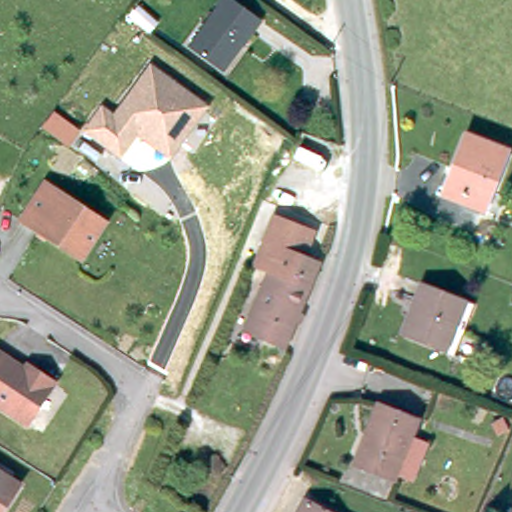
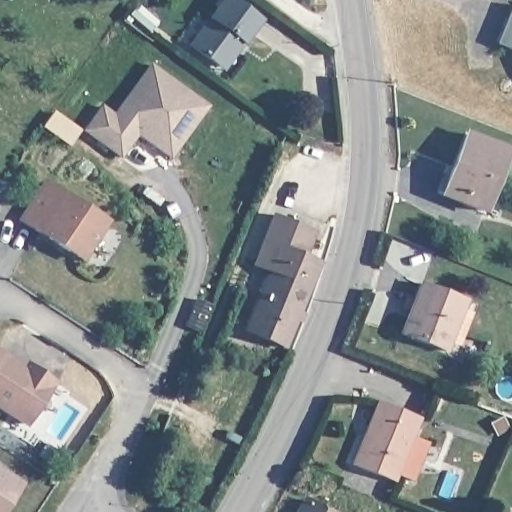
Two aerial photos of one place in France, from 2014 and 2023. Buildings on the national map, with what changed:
unchanged [(191,43),(224,0),(238,0),(265,21),(247,44),(226,70),(220,65),(191,43)]
new [(511,6),(512,6),(512,50),(496,44),(511,6)]
unchanged [(113,113),(150,64),(210,107),(170,161),(137,136),(120,158),(82,131),(101,105),(113,113)]
unchanged [(446,182),(464,128),(508,142),(487,204),(463,197),(443,190),(446,182)]
unchanged [(110,214),(85,252),(24,214),(50,175),(110,214)]
unchanged [(313,284),(318,286),(310,306),(305,304),(289,347),(260,333),(250,329),(283,245),(293,249),(322,261),(313,284)]
unchanged [(447,347),(440,345),(398,327),(418,277),(460,293),(468,296),(447,347)]
unchanged [(25,366),(27,362),(37,368),(55,380),(27,422),(0,404),(0,350),(25,366)]
unchanged [(365,427),(377,397),(419,413),(393,476),(358,461),(352,458),(365,427)]
unchanged [(226,423),(220,420),(210,415),(217,398),(227,403),(234,406),(226,423)]
unchanged [(20,481),(1,512),(0,512),(0,468),(20,481)]
unchanged [(307,497),(336,512),(300,512),(307,497)]

